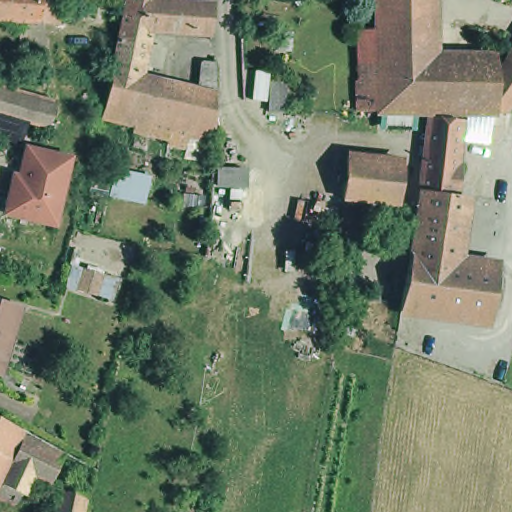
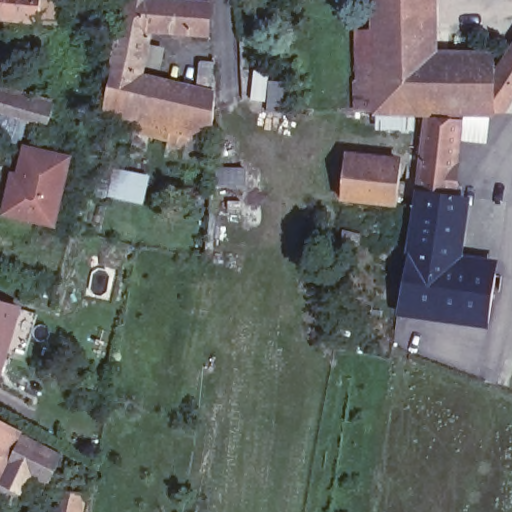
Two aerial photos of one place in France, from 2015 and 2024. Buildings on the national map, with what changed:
unchanged [(97,96),(55,87),(62,53),(70,16),(39,15),(32,14),(0,12),(0,0),(119,0),(112,35),(97,96)]
unchanged [(108,67),(120,16),(123,0),(147,0),(143,19),(132,72),(110,67),(108,67)]
unchanged [(207,25),(143,19),(147,0),(209,0),(208,10),(207,25)]
unchanged [(429,114),(355,108),(355,25),(369,24),(370,0),(442,0),(443,41),(498,44),(500,56),(512,41),(512,100),(506,109),(467,110),(462,190),(472,190),(465,246),(497,251),(495,322),(404,312),(412,245),(429,114)]
unchanged [(211,118),(154,105),(160,79),(197,87),(200,53),(213,54),(215,91),(215,101),(212,119),(211,118)]
unchanged [(105,93),(110,67),(132,72),(160,79),(154,105),(105,93)]
unchanged [(47,120),(0,105),(0,68),(17,73),(13,86),(54,98),(47,120)]
unchanged [(166,137),(168,126),(150,122),(148,128),(133,124),(135,119),(100,110),(102,101),(105,93),(154,105),(211,118),(207,135),(205,146),(166,137)]
unchanged [(132,145),(128,167),(117,165),(122,144),(132,145)]
unchanged [(57,224),(8,212),(15,188),(17,175),(23,175),(30,147),(73,157),(57,224)]
unchanged [(402,198),(347,192),(352,150),(407,156),(402,198)]
unchanged [(27,305),(8,370),(0,368),(0,297),(27,305)]
unchanged [(2,415),(20,425),(5,458),(0,470),(0,413),(2,415)]
unchanged [(0,490),(0,476),(10,457),(7,456),(13,443),(21,428),(62,450),(50,477),(31,468),(17,497),(0,490)]
unchanged [(86,512),(58,512),(63,485),(91,488),(86,512)]

